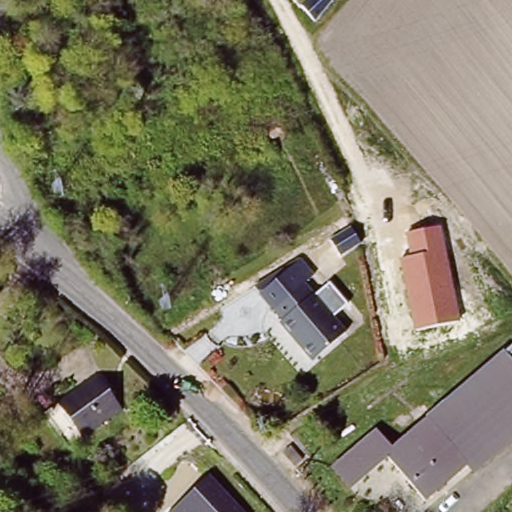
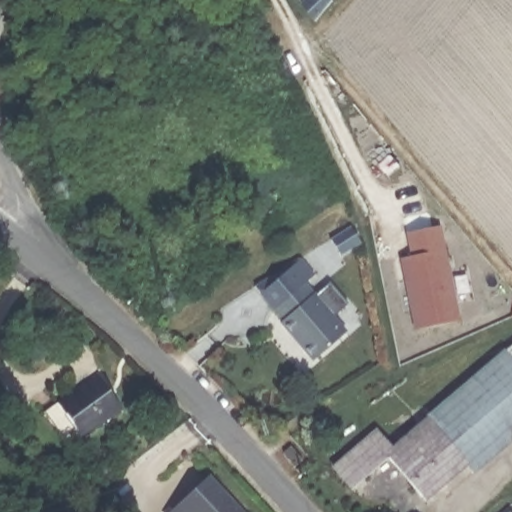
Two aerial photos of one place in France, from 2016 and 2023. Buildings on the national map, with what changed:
unchanged [(415,330),(400,260),(410,257),(406,234),(440,227),(458,320),(415,330)]
unchanged [(249,285),(271,271),(295,256),(298,260),(311,277),(302,285),(343,334),(310,362),(297,348),(299,345),(291,336),(289,338),(277,324),(280,321),(270,310),(257,295),(249,285)]
unchanged [(330,283),(347,304),(331,319),(313,298),(330,283)]
unchanged [(1,306),(0,307),(0,303),(1,306)]
unchanged [(388,459),(351,490),(329,467),(375,428),(392,445),(512,343),(512,434),(428,502),(388,459)]
unchanged [(122,403),(85,436),(58,408),(96,376),(122,403)]
unchanged [(247,512),(166,512),(211,475),(247,512)]

